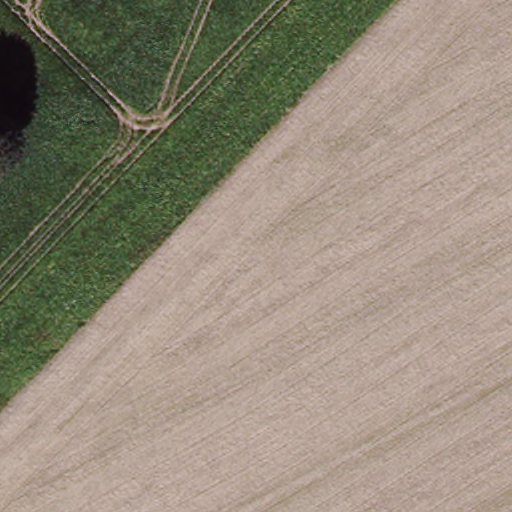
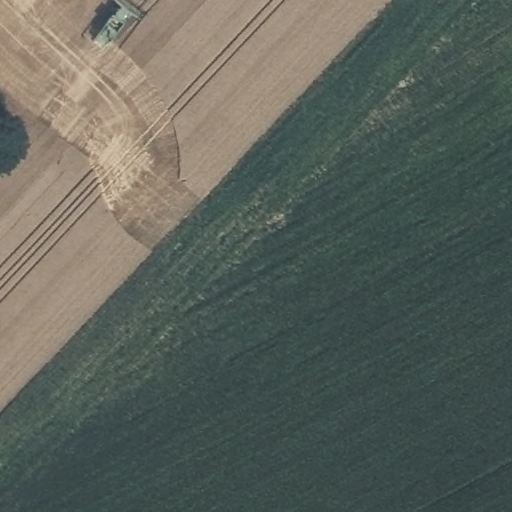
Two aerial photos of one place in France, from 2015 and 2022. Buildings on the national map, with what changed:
[]

